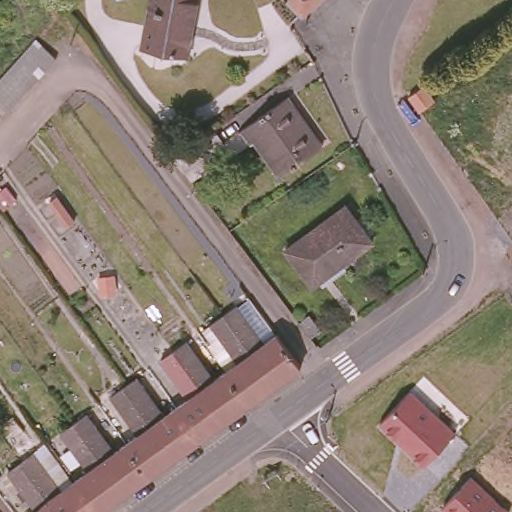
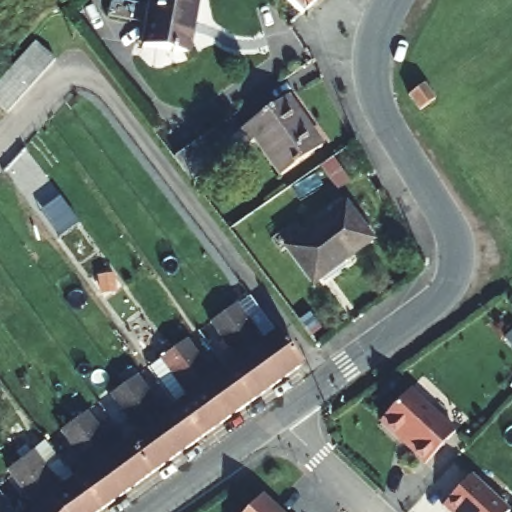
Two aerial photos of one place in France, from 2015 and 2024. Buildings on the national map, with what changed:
unchanged [(143,44),(151,0),(197,0),(190,53),(143,44)]
unchanged [(285,0),(321,0),(301,16),(285,0)]
unchanged [(2,75),(11,64),(17,58),(22,53),(32,41),(42,30),(59,46),(56,50),(50,57),(40,69),(32,78),(29,80),(20,91),(10,103),(0,93),(0,77),(2,75)]
unchanged [(422,81),(433,96),(418,106),(409,90),(422,81)]
unchanged [(287,98),(322,145),(280,175),(255,139),(250,143),(241,129),(287,98)]
unchanged [(225,140),(185,168),(174,154),(215,126),(225,140)]
unchanged [(347,204),(357,218),(362,214),(371,228),(367,231),(372,239),(312,282),(287,248),(347,204)]
unchanged [(235,305),(264,344),(275,337),(297,364),(300,369),(275,388),(222,315),(235,305)]
unchanged [(299,319),(308,312),(320,325),(310,334),(299,319)]
unchanged [(275,388),(250,405),(226,373),(237,364),(208,324),(222,315),(275,388)]
unchanged [(250,405),(225,424),(172,351),(185,341),(215,381),(226,373),(250,405)]
unchanged [(225,424),(200,443),(175,409),(189,400),(160,359),(172,351),(225,424)]
unchanged [(200,443),(175,460),(121,388),(133,379),(163,419),(175,409),(200,443)]
unchanged [(137,438),(108,398),(121,388),(175,460),(150,479),(126,446),(137,438)]
unchanged [(457,432),(423,466),(380,424),(412,390),(457,432)]
unchanged [(83,415),(113,455),(126,446),(150,479),(125,497),(72,424),(83,415)]
unchanged [(87,474),(58,434),(72,424),(125,497),(104,512),(99,512),(76,482),(87,474)]
unchanged [(99,512),(57,512),(16,466),(34,453),(62,492),(76,482),(99,512)]
unchanged [(57,512),(35,512),(7,472),(16,466),(57,512)]
unchanged [(511,512),(448,512),(442,507),(473,476),(511,512)]
new [(283,512),(246,512),(262,493),(283,512)]

